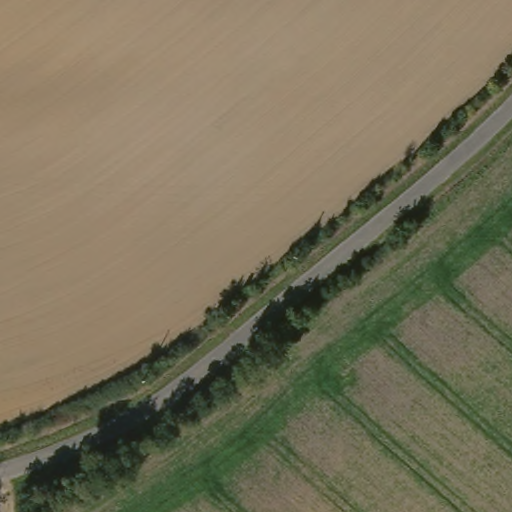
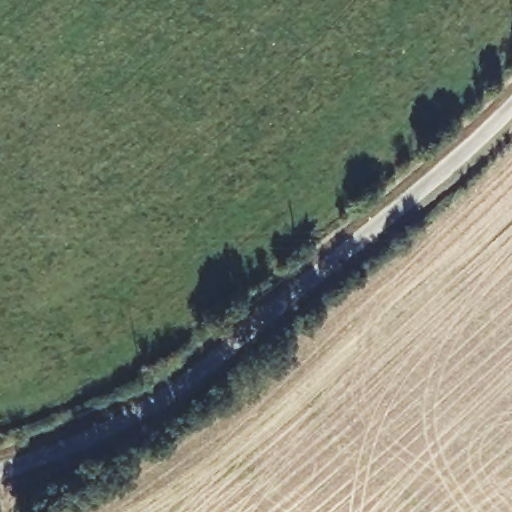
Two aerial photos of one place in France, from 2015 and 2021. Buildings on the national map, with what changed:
[]

